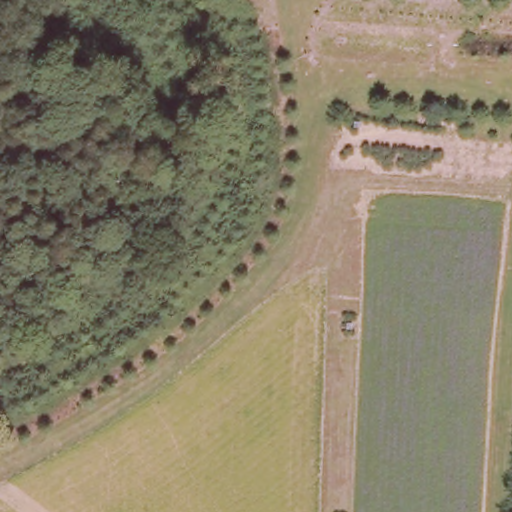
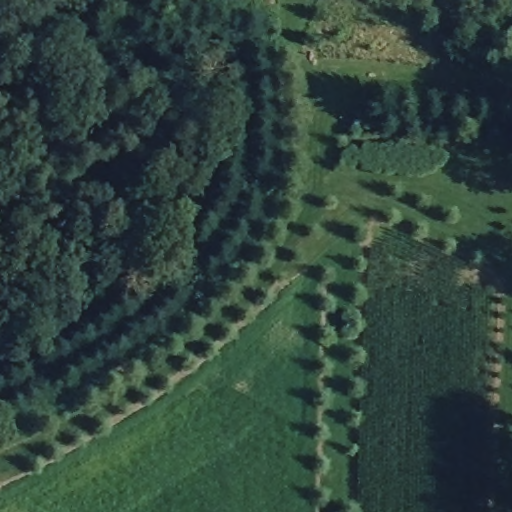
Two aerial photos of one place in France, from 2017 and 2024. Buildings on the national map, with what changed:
[]

